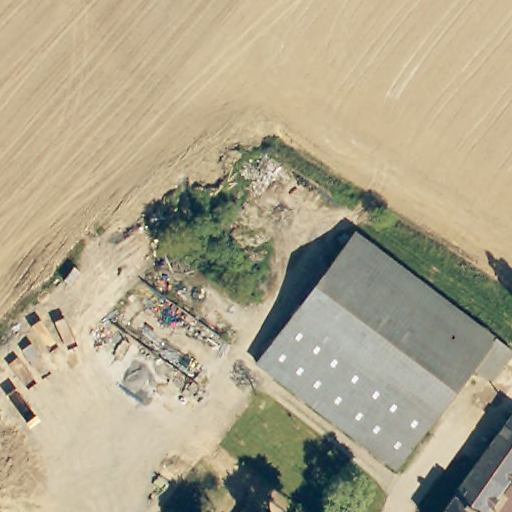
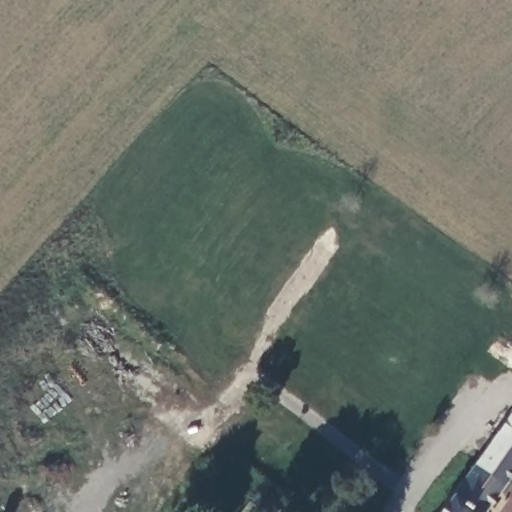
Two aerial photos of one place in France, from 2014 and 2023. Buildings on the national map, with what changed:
demolished [(293,317),(358,232),(512,352),(512,360),(492,383),(474,370),(432,422),(293,317)]
unchanged [(439,478),(461,450),(480,463),(512,420),(512,477),(487,512),(445,512),(458,493),(439,478)]

